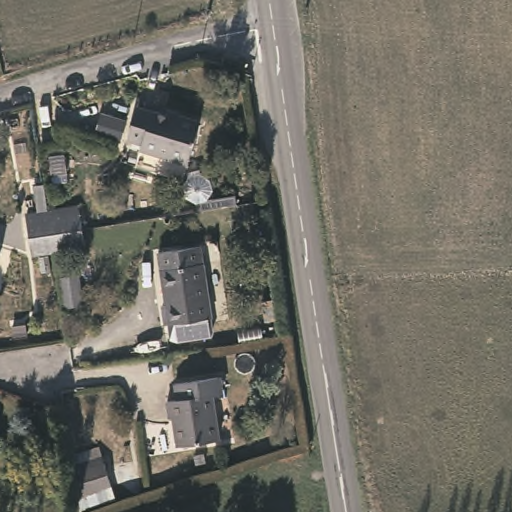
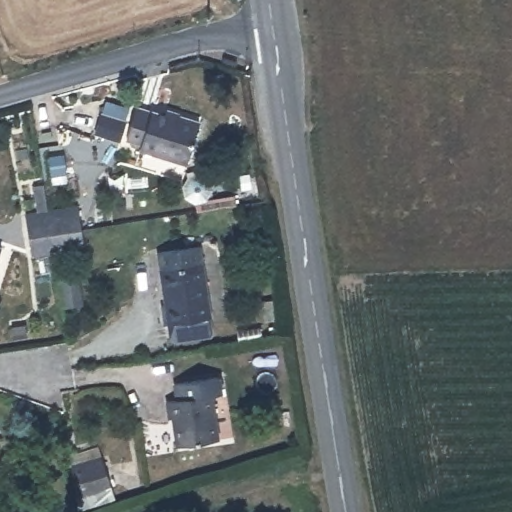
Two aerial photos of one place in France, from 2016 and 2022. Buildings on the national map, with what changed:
unchanged [(171,111),(173,106),(205,119),(192,159),(143,142),(144,140),(132,135),(145,101),(171,111)]
unchanged [(63,245),(40,250),(34,220),(31,212),(57,207),(84,202),(85,211),(88,225),(91,239),(63,245)]
unchanged [(0,252),(0,245),(2,246),(0,252)]
unchanged [(214,315),(169,323),(165,301),(172,300),(164,252),(202,246),(214,315)]
unchanged [(220,397),(212,398),(219,438),(176,445),(172,412),(166,413),(164,400),(175,397),(173,384),(217,377),(220,397)]
unchanged [(76,497),(72,473),(70,456),(99,447),(104,463),(111,487),(76,497)]

